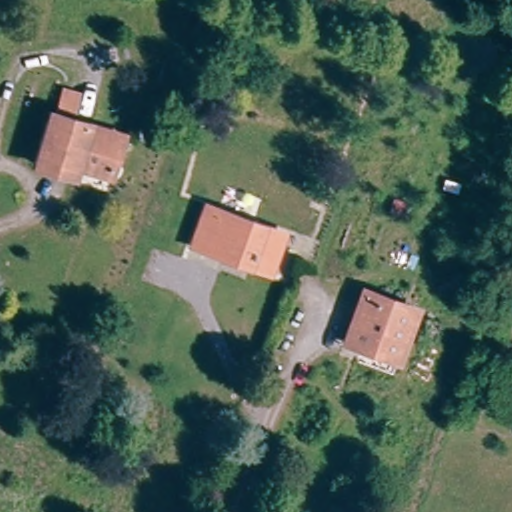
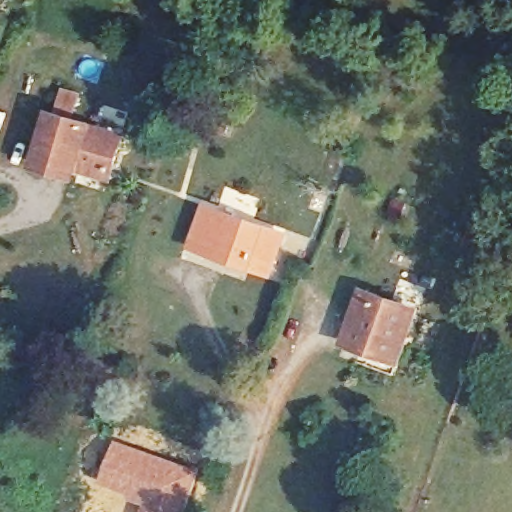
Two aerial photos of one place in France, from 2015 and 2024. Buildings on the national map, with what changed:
unchanged [(52,166),(37,161),(52,114),(118,134),(107,172),(76,163),(72,165),(70,172),(52,166)]
unchanged [(408,204),(403,218),(390,213),(395,199),(408,204)]
unchanged [(267,275),(192,247),(209,204),(283,234),(267,275)]
unchanged [(394,357),(346,339),(363,290),(412,309),(394,357)]
new [(116,440),(202,472),(187,512),(139,512),(142,505),(101,485),(116,440)]

